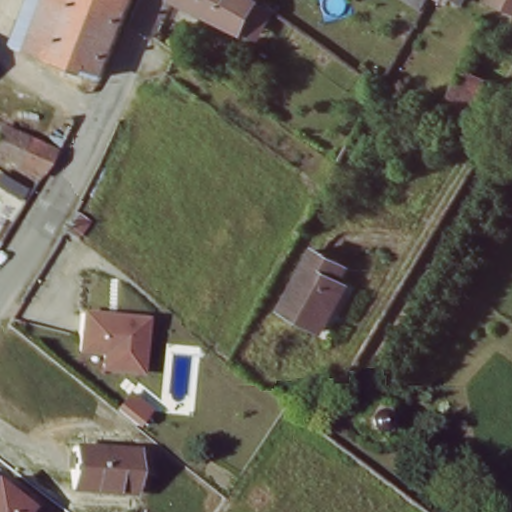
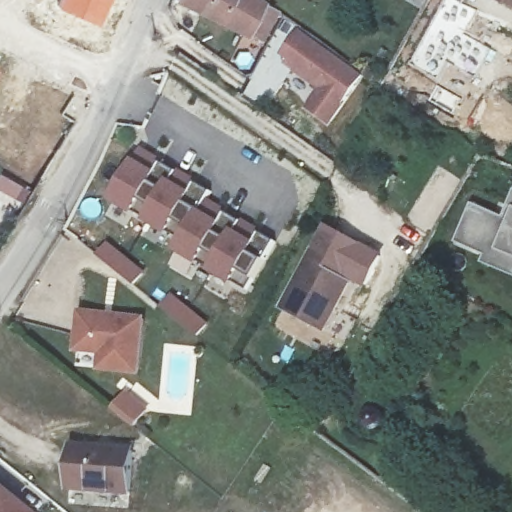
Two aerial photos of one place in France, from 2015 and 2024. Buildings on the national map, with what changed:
demolished [(103,77),(10,39),(25,0),(133,0),(103,77)]
new [(56,0),(105,0),(96,22),(54,5),(56,0)]
unchanged [(279,9),(261,37),(248,29),(242,37),(178,0),(267,0),(279,9)]
unchanged [(463,5),(454,0),(465,0),(463,5)]
unchanged [(495,0),(512,0),(512,10),(494,2),(495,0)]
new [(304,27),(369,74),(334,122),(310,105),(324,86),(282,56),(304,27)]
unchanged [(488,77),(472,113),(451,104),(467,67),(488,77)]
demolished [(47,177),(0,156),(0,139),(7,126),(63,151),(47,177)]
new [(143,152),(162,162),(178,172),(176,176),(151,221),(115,201),(141,157),(143,152)]
new [(30,190),(23,202),(0,191),(0,172),(30,190)]
new [(176,176),(194,186),(196,182),(213,191),(185,240),(151,221),(176,176)]
new [(512,202),(512,273),(486,262),(489,252),(463,241),(477,205),(506,215),(512,202)]
new [(185,240),(205,205),(224,215),(226,211),(243,220),(240,225),(215,269),(180,250),(185,240)]
new [(240,225),(258,235),(261,230),(277,240),(250,288),(215,269),(240,225)]
new [(136,286),(119,272),(105,260),(103,258),(112,247),(128,261),(145,274),(136,286)]
unchanged [(316,328),(285,310),(317,250),(349,267),(341,281),(350,286),(336,312),(325,333),(316,328)]
new [(200,336),(185,324),(183,322),(166,309),(175,298),(192,311),(209,325),(200,336)]
unchanged [(149,325),(143,378),(142,377),(107,374),(109,359),(83,356),(85,333),(87,318),(149,325)]
unchanged [(135,450),(131,493),(71,488),(75,445),(135,450)]
unchanged [(25,506),(20,512),(0,512),(0,486),(25,506)]

